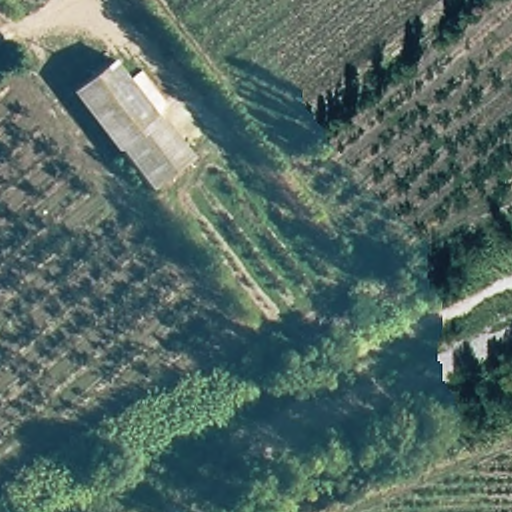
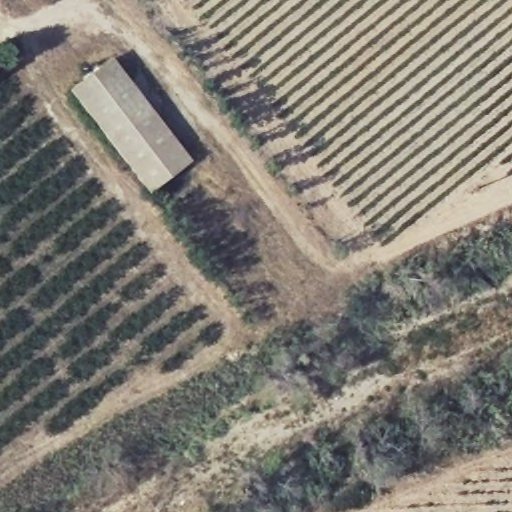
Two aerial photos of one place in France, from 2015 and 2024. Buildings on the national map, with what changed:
unchanged [(149,194),(65,91),(109,57),(191,164),(149,194)]

